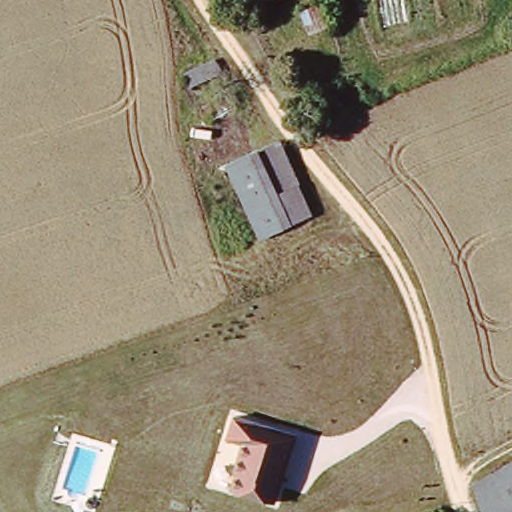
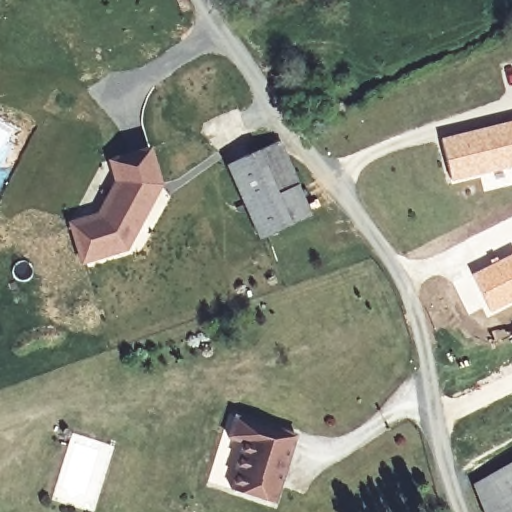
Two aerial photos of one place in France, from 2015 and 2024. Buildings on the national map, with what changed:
demolished [(249,8),(246,0),(278,0),(249,8)]
unchanged [(220,72),(194,84),(188,73),(214,61),(220,72)]
new [(512,119),(512,182),(485,190),(481,175),(451,181),(440,137),(512,119)]
new [(95,210),(110,179),(105,157),(152,144),(163,185),(128,249),(125,250),(79,264),(65,220),(95,210)]
unchanged [(285,147),(320,216),(266,241),(234,166),(285,147)]
new [(512,252),(512,301),(490,312),(471,273),(512,252)]
unchanged [(242,445),(225,439),(232,416),(297,435),(275,502),(229,487),(242,445)]
unchanged [(512,466),(512,512),(489,512),(474,486),(512,466)]

